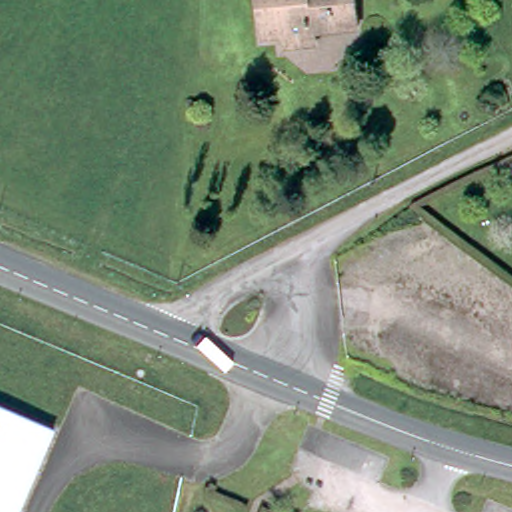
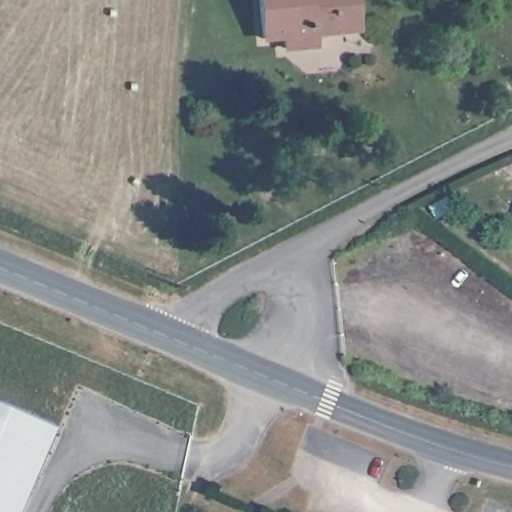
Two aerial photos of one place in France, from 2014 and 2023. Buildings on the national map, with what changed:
unchanged [(314,31),(316,42),(286,44),(285,34),(264,35),(260,0),(355,0),(356,13),(358,26),(336,29),(314,31)]
unchanged [(22,512),(0,512),(0,404),(56,428),(22,512)]

